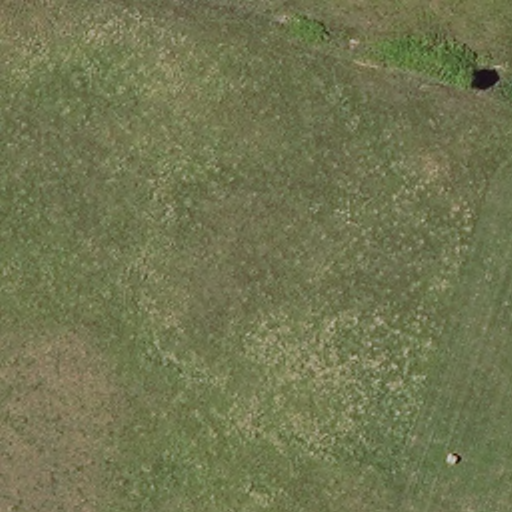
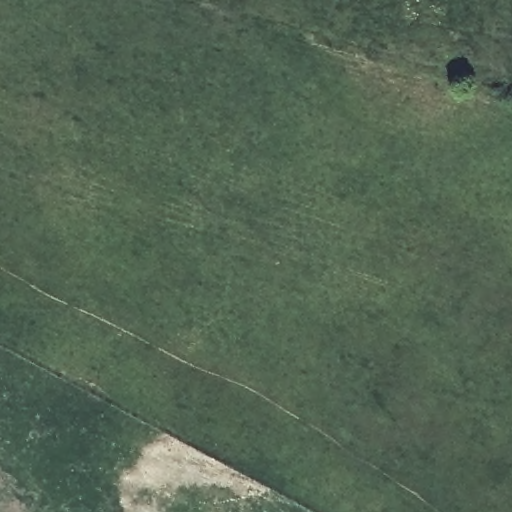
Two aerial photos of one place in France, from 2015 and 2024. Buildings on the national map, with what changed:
[]

